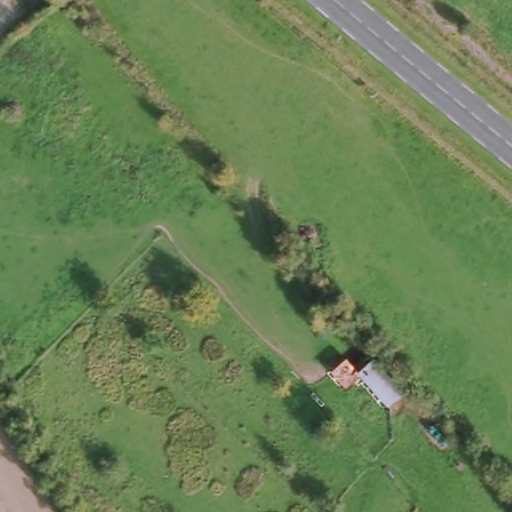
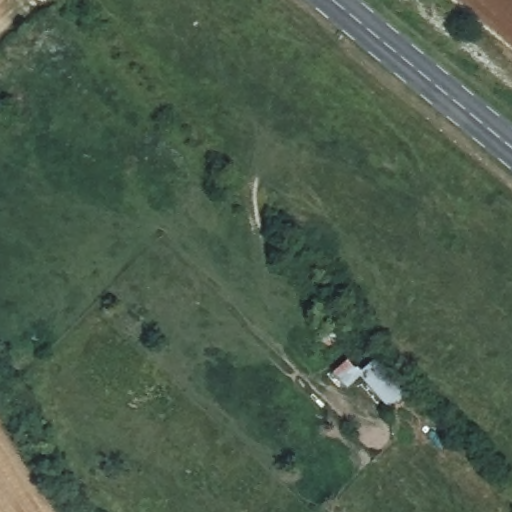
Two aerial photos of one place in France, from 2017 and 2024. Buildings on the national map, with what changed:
unchanged [(357,375),(344,387),(330,369),(359,346),(406,391),(387,409),(357,375)]

